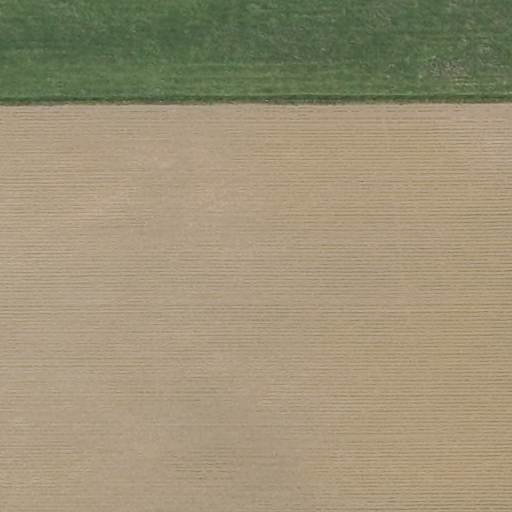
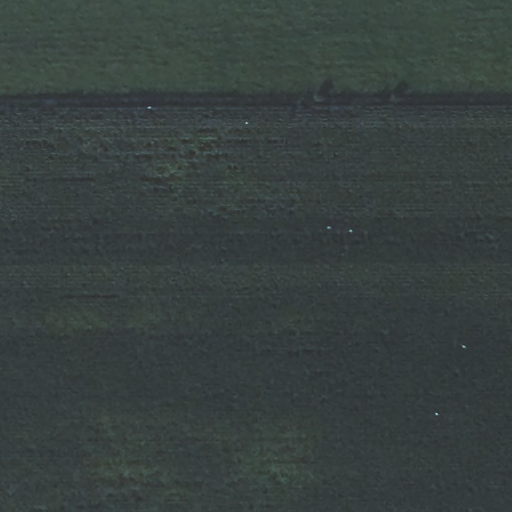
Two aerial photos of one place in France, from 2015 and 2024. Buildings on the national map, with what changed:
[]

